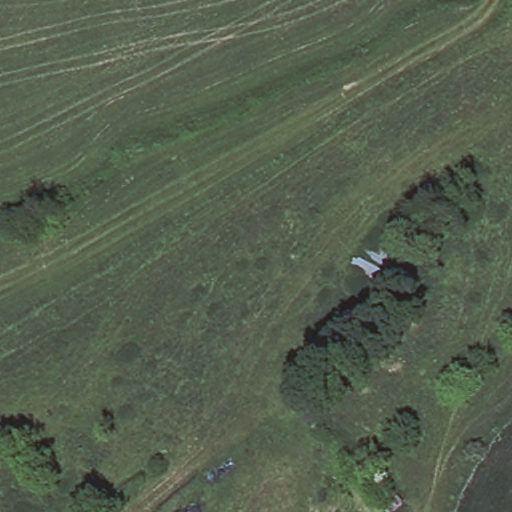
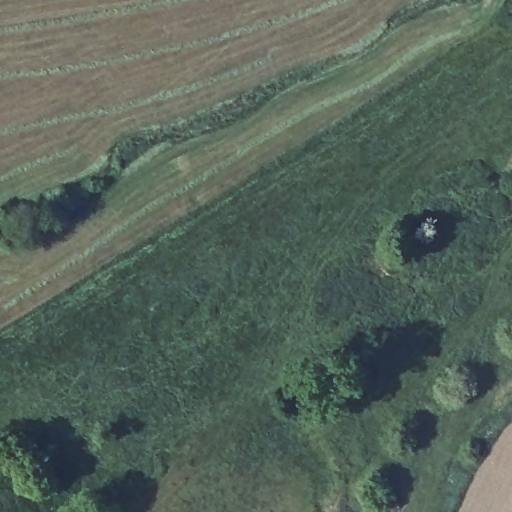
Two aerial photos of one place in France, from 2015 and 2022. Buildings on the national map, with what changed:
unchanged [(375,248),(388,261),(368,283),(355,273),(375,248)]

